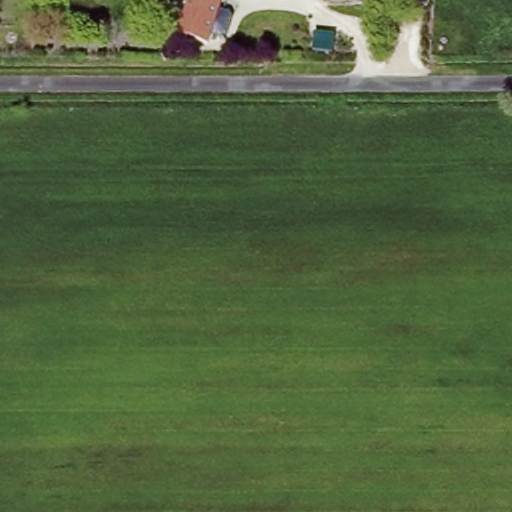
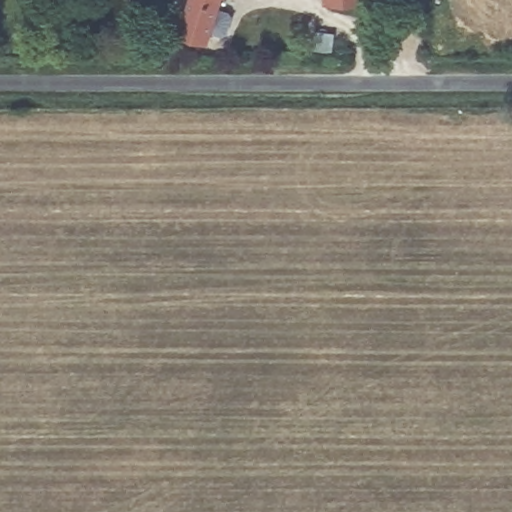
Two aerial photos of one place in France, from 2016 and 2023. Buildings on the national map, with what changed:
unchanged [(178,42),(190,0),(219,0),(207,47),(178,42)]
unchanged [(331,0),(368,0),(367,8),(331,7),(331,0)]

